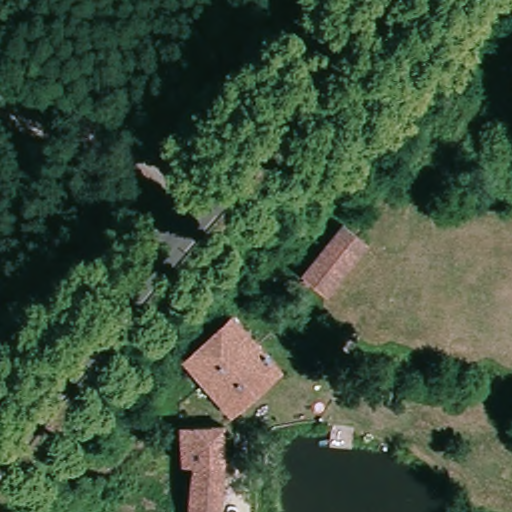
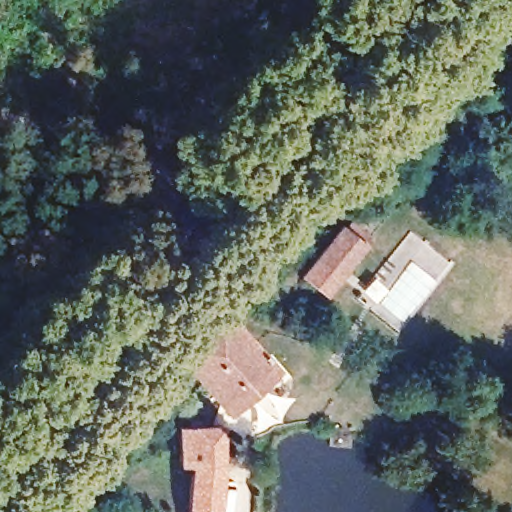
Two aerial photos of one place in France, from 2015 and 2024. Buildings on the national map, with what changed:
unchanged [(377,244),(343,291),(317,272),(352,227),(377,244)]
unchanged [(288,372),(242,413),(196,366),(239,325),(288,372)]
unchanged [(192,512),(193,473),(183,472),(183,460),(183,447),(183,424),(232,428),(232,440),(231,456),(229,512),(192,512)]

